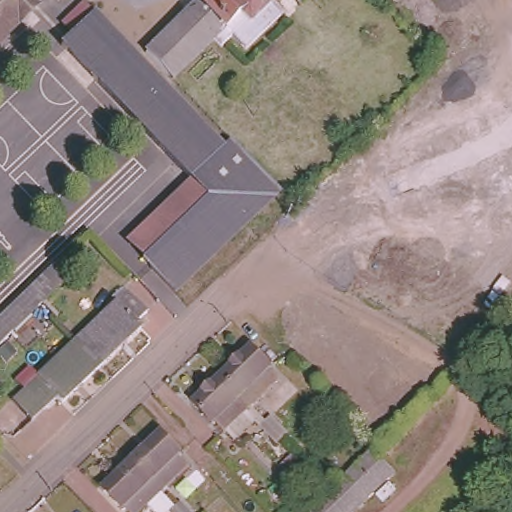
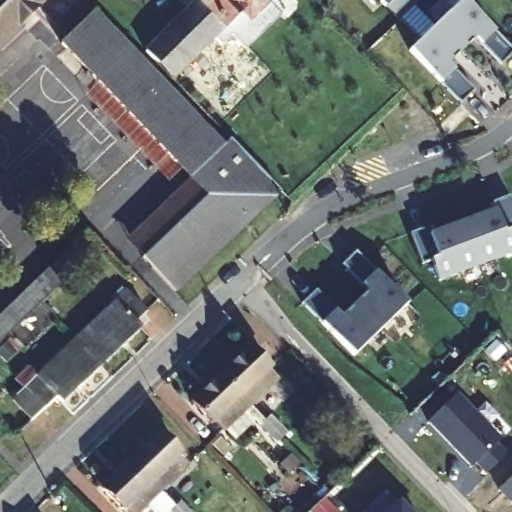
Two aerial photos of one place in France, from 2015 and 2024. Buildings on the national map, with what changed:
unchanged [(35,5),(38,9),(17,29),(14,25),(0,38),(0,0),(40,0),(35,5)]
unchanged [(220,147),(230,137),(262,171),(151,275),(119,240),(185,179),(168,160),(42,26),(71,0),(83,0),(202,129),(220,147)]
unchanged [(143,51),(195,2),(196,0),(269,0),(272,4),(280,14),(245,51),(232,38),(222,47),(215,40),(172,82),(143,51)]
new [(398,21),(379,0),(420,0),(398,21)]
new [(512,49),(512,54),(501,65),(475,38),(462,51),(437,25),(461,0),(464,0),(512,49)]
new [(437,25),(462,51),(449,64),(475,91),(461,104),(410,51),(437,25)]
unchanged [(262,171),(281,193),(170,296),(151,275),(262,171)]
new [(492,202),(510,196),(512,201),(512,231),(512,253),(480,265),(463,222),(495,210),(492,202)]
new [(428,227),(432,234),(463,222),(480,265),(440,281),(432,261),(422,264),(410,233),(428,227)]
new [(356,251),(407,304),(380,330),(355,304),(368,291),(342,265),(356,251)]
unchanged [(59,252),(72,264),(0,332),(0,309),(59,252)]
unchanged [(87,333),(137,287),(155,306),(145,317),(150,324),(112,359),(87,333)]
new [(316,290),(342,317),(355,304),(380,330),(355,356),(302,303),(316,290)]
unchanged [(483,338),(490,332),(505,348),(498,354),(483,338)]
unchanged [(87,333),(112,359),(72,396),(66,392),(39,417),(20,395),(85,336),(87,333)]
unchanged [(272,375),(245,401),(213,368),(241,342),(272,375)]
unchanged [(245,401),(218,426),(185,396),(213,368),(245,401)]
new [(501,440),(497,443),(507,456),(487,476),(477,464),(471,468),(427,423),(458,393),(501,440)]
unchanged [(257,423),(262,418),(267,413),(282,427),(277,433),(272,438),(257,423)]
unchanged [(157,508),(143,494),(130,507),(117,495),(115,497),(97,480),(125,451),(155,422),(175,441),(173,443),(183,454),(155,482),(170,496),(157,508)]
demolished [(317,512),(339,491),(374,457),(393,476),(355,512),(317,512)]
new [(512,475),(512,507),(495,490),(512,475)]
unchanged [(177,503),(185,497),(195,508),(191,512),(174,512),(171,508),(177,503)]
new [(388,512),(400,500),(411,512),(388,512)]

